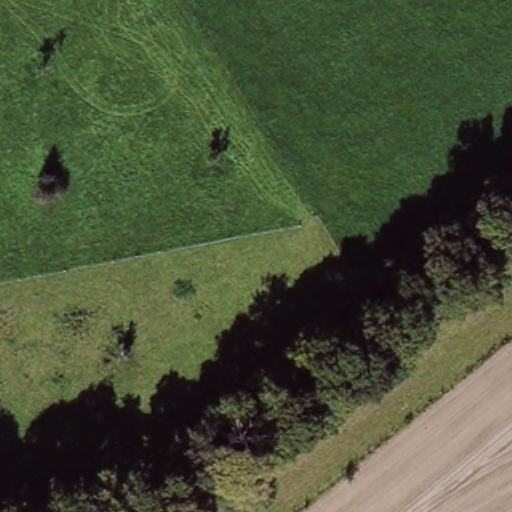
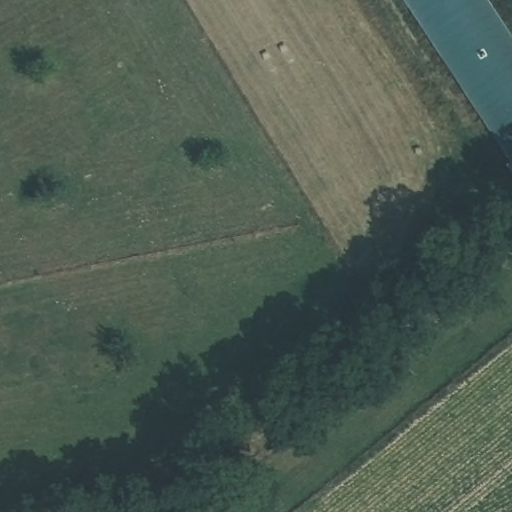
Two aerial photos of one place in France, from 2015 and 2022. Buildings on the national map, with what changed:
new [(512,156),(510,157),(407,0),(489,0),(512,35),(512,156)]

